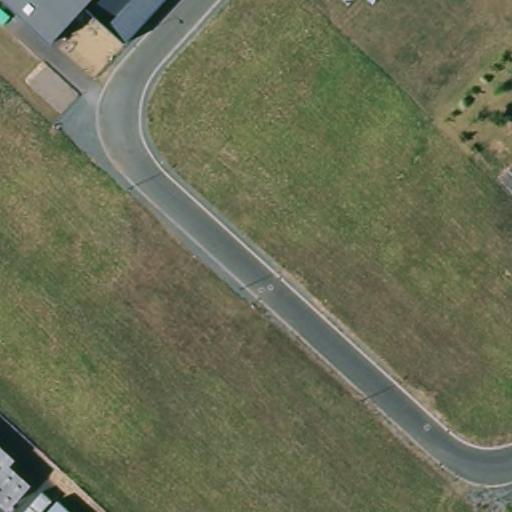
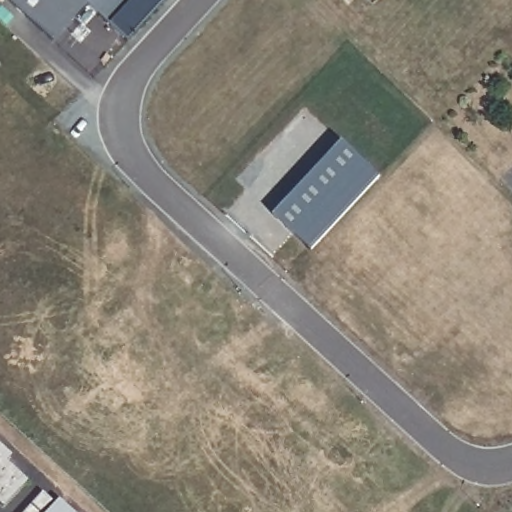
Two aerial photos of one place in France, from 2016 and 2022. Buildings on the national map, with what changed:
unchanged [(8,0),(133,0),(109,26),(85,5),(52,42),(8,0)]
new [(339,142),(378,179),(310,253),(271,217),(339,142)]
unchanged [(10,466),(29,483),(5,508),(0,503),(0,445),(16,460),(10,466)]
unchanged [(54,512),(61,505),(69,512),(54,512)]

